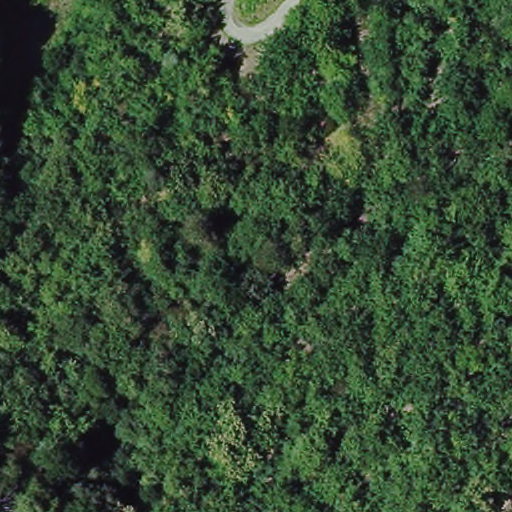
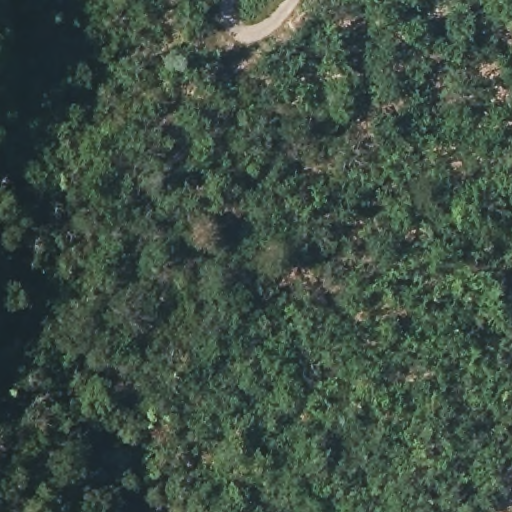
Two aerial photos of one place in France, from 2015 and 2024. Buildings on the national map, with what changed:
[]

